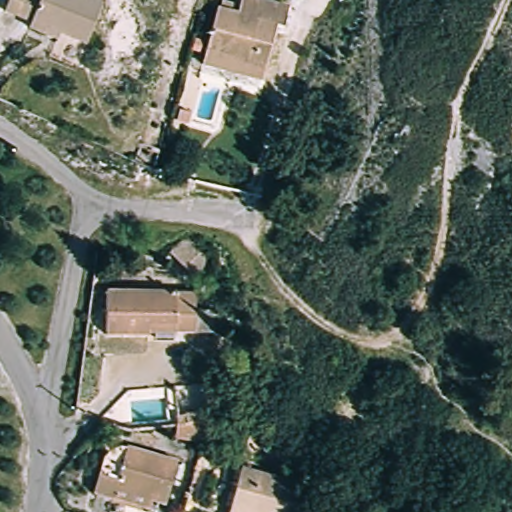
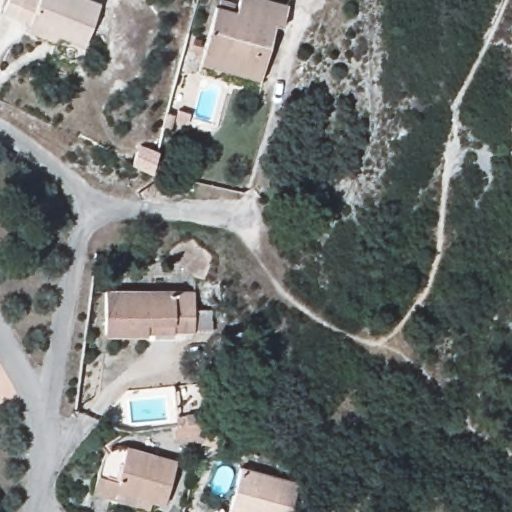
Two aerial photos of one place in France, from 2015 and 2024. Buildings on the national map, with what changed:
unchanged [(2,16),(6,0),(93,0),(81,39),(73,66),(44,58),(53,30),(2,16)]
unchanged [(243,0),(280,0),(291,3),(285,26),(277,25),(263,71),(248,66),(250,58),(205,46),(217,5),(240,11),(243,0)]
unchanged [(260,81),(200,64),(205,46),(250,58),(248,66),(263,71),(260,81)]
unchanged [(187,110),(198,113),(196,123),(184,120),(187,110)]
unchanged [(144,325),(141,337),(104,331),(111,287),(167,297),(197,302),(193,329),(190,342),(167,338),(168,329),(156,327),(144,325)]
unchanged [(175,414),(210,408),(213,442),(176,440),(175,414)]
unchanged [(126,496),(115,493),(116,491),(95,487),(105,454),(125,460),(130,441),(177,454),(165,499),(154,496),(154,495),(152,503),(126,496)]
unchanged [(232,500),(242,466),(302,484),(294,512),(231,512),(229,512),(232,500)]

